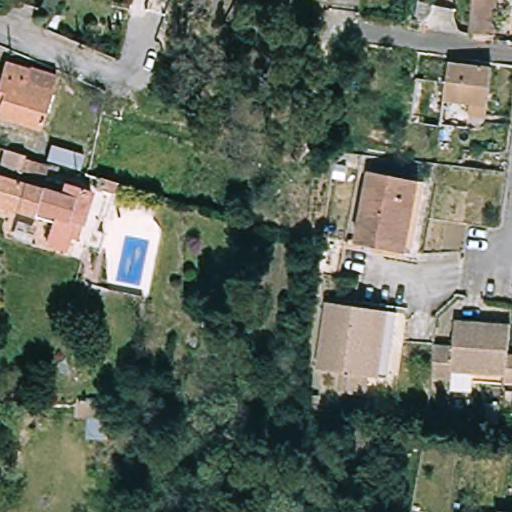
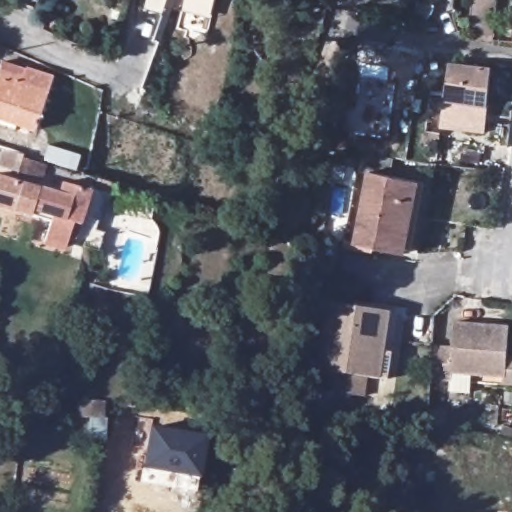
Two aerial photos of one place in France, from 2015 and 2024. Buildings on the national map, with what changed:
unchanged [(470,33),(473,0),(488,0),(484,35),(470,33)]
unchanged [(447,63),(488,67),(485,104),(444,102),(447,63)]
unchanged [(37,131),(0,119),(0,77),(5,65),(54,82),(37,131)]
unchanged [(55,140),(87,149),(82,165),(50,155),(55,140)]
unchanged [(27,149),(53,158),(48,173),(22,165),(27,149)]
unchanged [(67,177),(93,186),(83,219),(77,217),(70,239),(49,232),(55,215),(0,198),(0,168),(62,188),(67,177)]
unchanged [(378,250),(357,246),(371,174),(419,183),(409,239),(405,255),(378,250)]
unchanged [(324,302),(391,315),(379,379),(312,367),(324,302)]
unchanged [(440,386),(442,380),(422,377),(427,346),(445,348),(448,324),(503,330),(500,354),(512,356),(512,383),(497,381),(497,378),(462,374),(461,388),(440,386)]
unchanged [(0,384),(21,382),(23,410),(0,411),(0,384)]
new [(77,418),(77,400),(108,401),(105,440),(89,440),(90,418),(77,418)]
unchanged [(435,414),(432,428),(415,425),(417,420),(417,411),(435,414)]
new [(207,436),(200,478),(142,467),(150,425),(207,436)]
unchanged [(509,462),(512,445),(512,446),(512,462),(509,462)]

